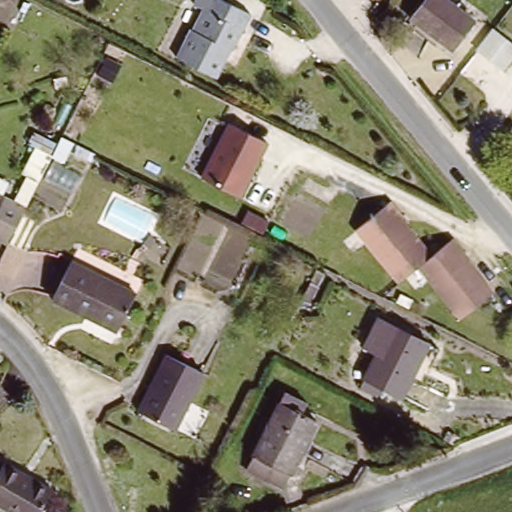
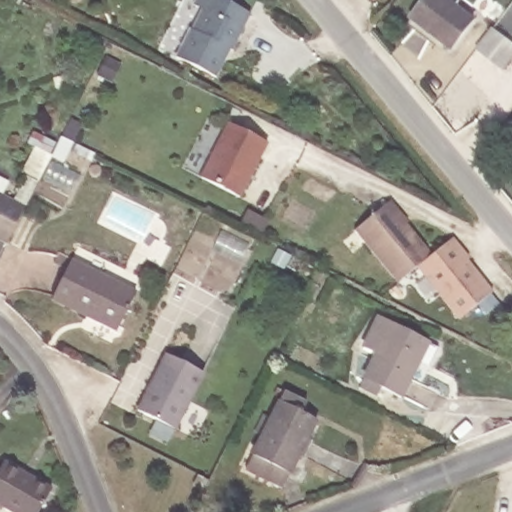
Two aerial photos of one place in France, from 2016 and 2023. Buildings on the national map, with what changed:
unchanged [(256,16),(238,52),(229,48),(224,56),(230,59),(219,78),(173,55),(198,7),(186,0),(187,0),(226,0),(256,16)]
unchanged [(459,2),(452,12),(473,27),(454,53),(412,22),(428,0),(457,0),(459,2)]
unchanged [(512,48),(512,64),(503,76),(478,57),(494,35),(512,48)]
unchanged [(268,143),(242,199),(199,179),(227,122),(268,143)]
unchanged [(10,247),(0,242),(0,194),(29,210),(10,247)]
unchanged [(402,284),(356,232),(391,202),(411,225),(409,226),(434,255),(418,270),(402,284)]
unchanged [(469,259),(466,261),(495,294),(463,322),(418,270),(434,255),(452,240),(469,259)]
unchanged [(89,321),(54,302),(76,262),(138,295),(119,331),(116,335),(89,321)]
unchanged [(430,337),(424,349),(434,353),(422,377),(412,372),(404,386),(371,370),(380,350),(366,343),(381,313),(430,337)]
unchanged [(206,369),(174,429),(138,410),(169,349),(206,369)]
unchanged [(249,469),(255,456),(281,405),(316,422),(290,474),(284,486),(249,469)]
unchanged [(38,512),(26,512),(0,498),(0,471),(7,459),(53,484),(38,512)]
unchanged [(210,482),(203,495),(195,490),(201,477),(210,482)]

